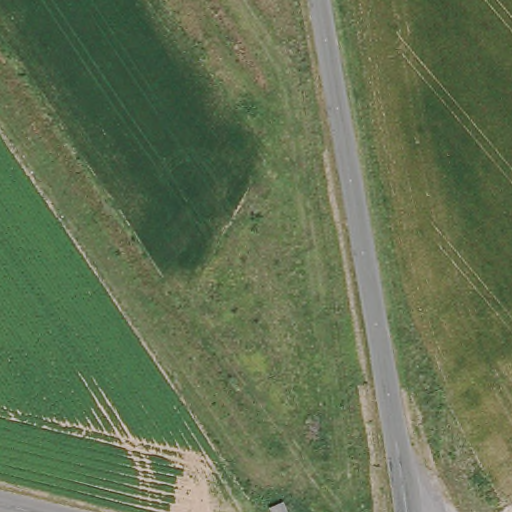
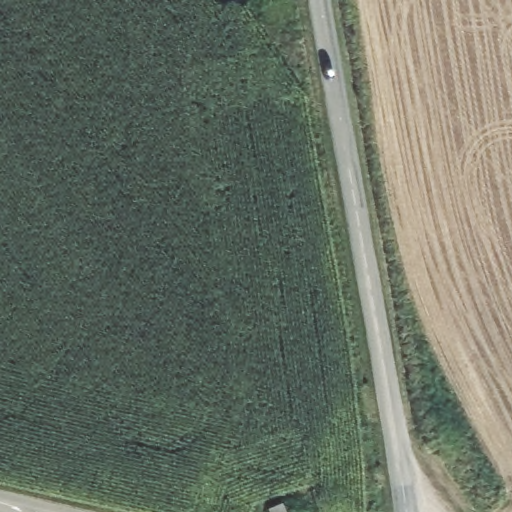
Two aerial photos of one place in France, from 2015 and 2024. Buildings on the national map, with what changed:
unchanged [(280,503),(286,512),(269,512),(269,511),(280,503)]

